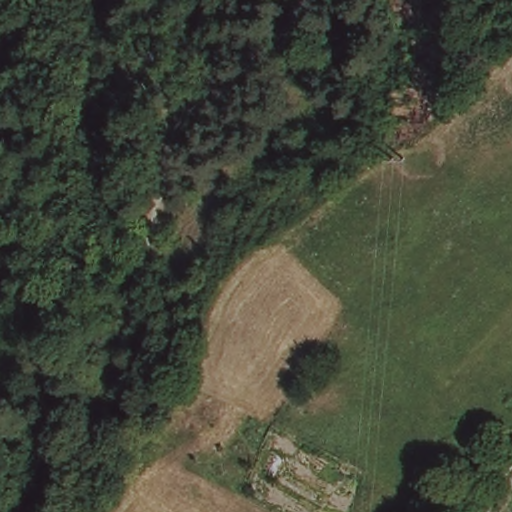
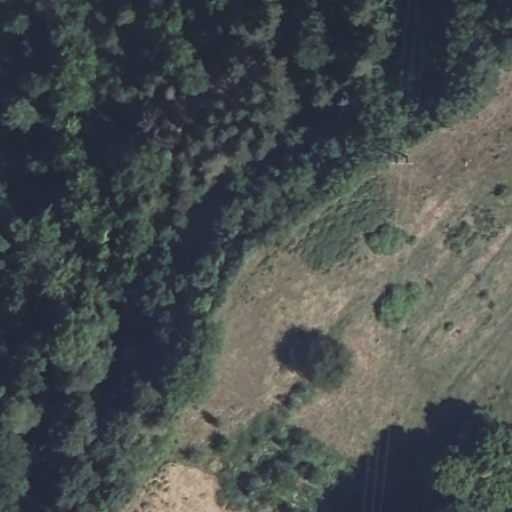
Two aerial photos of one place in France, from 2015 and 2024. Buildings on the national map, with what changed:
[]

